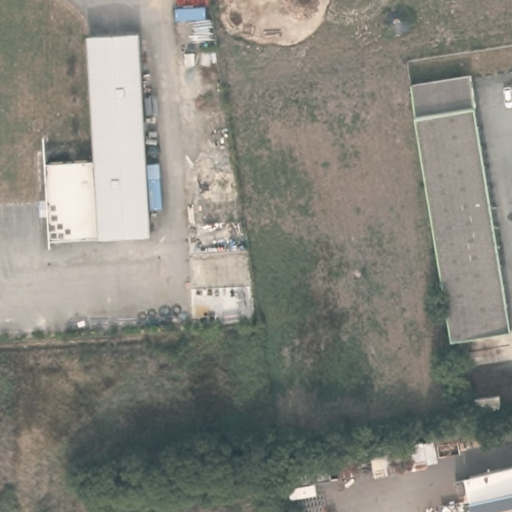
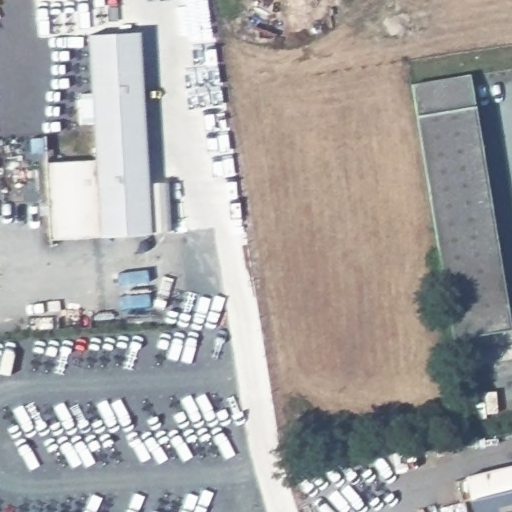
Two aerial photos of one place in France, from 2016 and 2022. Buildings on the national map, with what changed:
unchanged [(141,35),(151,237),(51,242),(47,165),(97,162),(91,37),(141,35)]
unchanged [(414,87),(474,80),(478,110),(420,119),(414,87)]
unchanged [(512,325),(512,335),(455,343),(420,119),(478,110),(512,325)]
unchanged [(512,495),(512,512),(473,512),(471,504),(512,495)]

